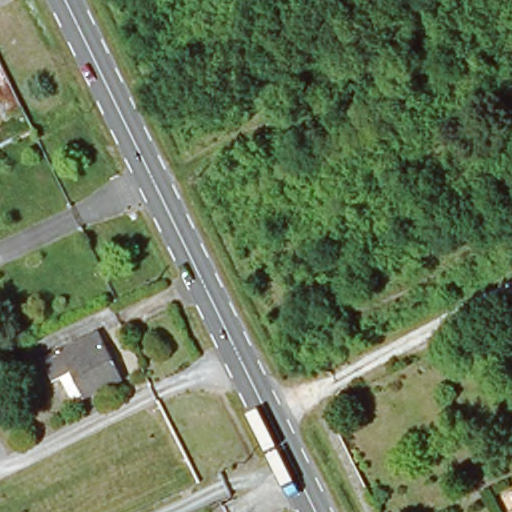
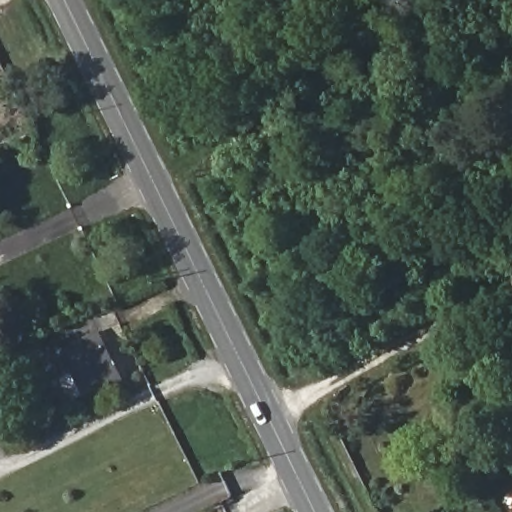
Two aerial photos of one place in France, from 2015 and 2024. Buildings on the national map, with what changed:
unchanged [(64,381),(56,384),(46,360),(99,335),(121,382),(87,400),(85,395),(73,401),(64,381)]

